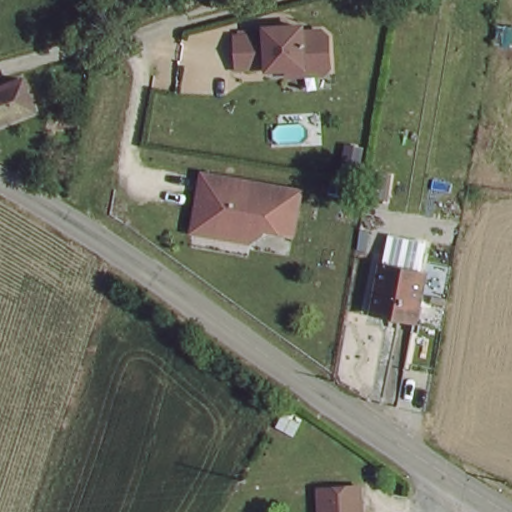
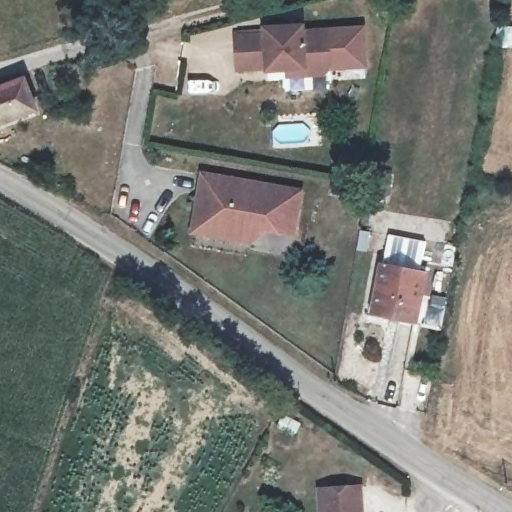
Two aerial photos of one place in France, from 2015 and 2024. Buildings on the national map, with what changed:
unchanged [(287,66),(267,67),(267,64),(237,66),(235,34),(265,32),(265,25),(302,23),(302,29),(322,27),(327,33),(330,64),(324,70),(310,71),(287,73),(287,66)]
new [(362,24),(365,68),(324,70),(330,64),(327,33),(322,27),(362,24)]
unchanged [(42,109),(0,125),(0,90),(30,78),(42,109)]
unchanged [(195,215),(203,171),(248,179),(247,183),(257,185),(262,181),(302,188),(295,232),(265,226),(263,231),(251,239),(236,237),(193,229),(195,215)]
unchanged [(415,324),(373,316),(381,269),(423,276),(415,324)]
unchanged [(367,512),(322,512),(322,490),(366,490),(367,512)]

